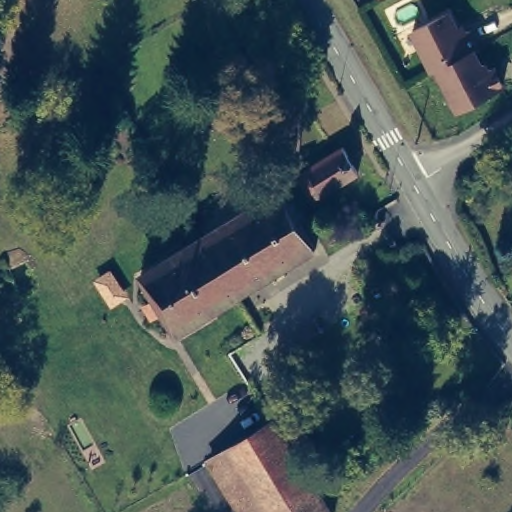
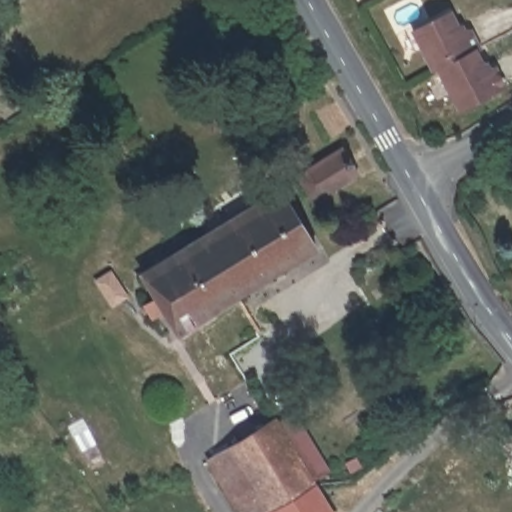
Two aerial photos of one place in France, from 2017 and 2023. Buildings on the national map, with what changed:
unchanged [(441,68),(435,70),(416,30),(452,12),(464,35),(473,31),(482,48),(477,50),(441,68)]
unchanged [(460,108),(441,68),(477,50),(488,72),(497,68),(506,85),(460,108)]
unchanged [(309,168),(341,148),(355,174),(312,199),(298,178),(309,168)]
unchanged [(282,189),(315,245),(240,291),(237,287),(240,286),(210,239),(207,235),(282,189)]
unchanged [(210,239),(240,286),(237,287),(175,323),(147,277),(210,239)]
unchanged [(300,484),(316,512),(235,512),(206,461),(267,425),(300,484)]

